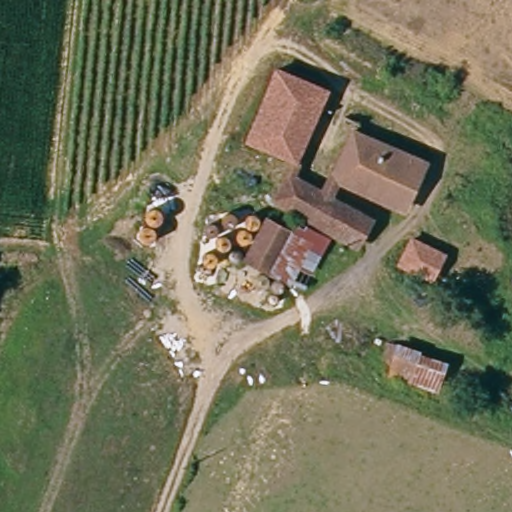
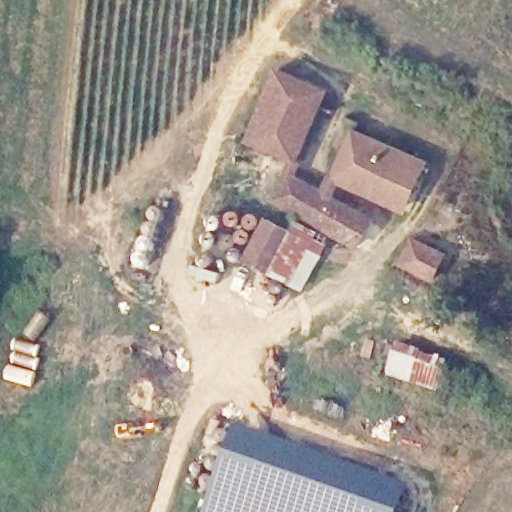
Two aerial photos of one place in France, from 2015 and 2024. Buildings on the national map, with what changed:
unchanged [(289,65),(339,87),(304,158),(254,134),(289,65)]
unchanged [(346,178),(364,136),(424,161),(409,203),(346,178)]
unchanged [(335,234),(333,232),(278,205),(294,176),(378,215),(364,247),(335,234)]
unchanged [(279,304),(278,305),(249,291),(247,290),(263,257),(254,252),(278,205),(333,232),(335,234),(312,282),(294,272),(279,304)]
unchanged [(404,262),(414,242),(448,259),(439,280),(404,262)]
unchanged [(388,377),(401,337),(456,360),(444,394),(388,377)]
new [(409,487),(401,512),(206,512),(237,426),(409,487)]

